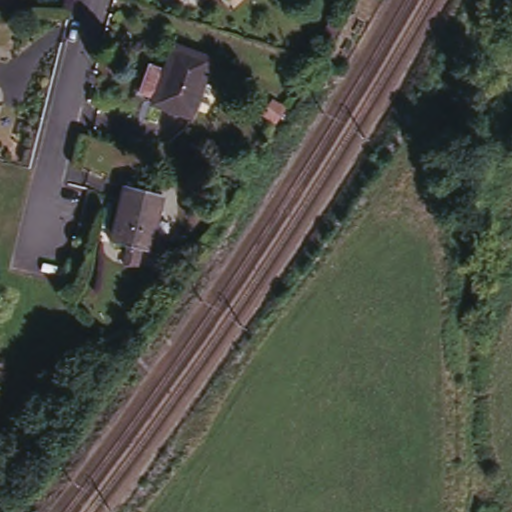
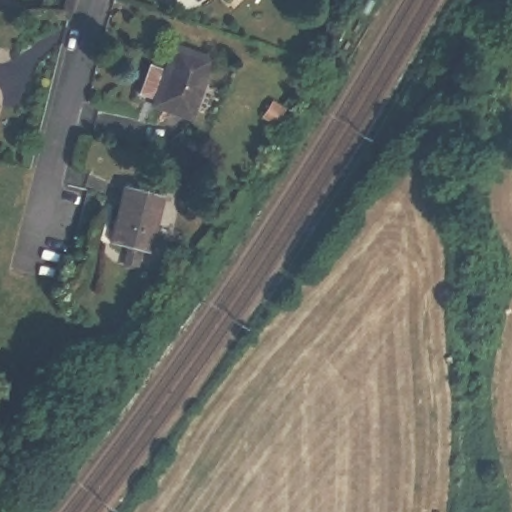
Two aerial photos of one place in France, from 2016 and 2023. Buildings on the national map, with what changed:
unchanged [(154,94),(138,89),(147,61),(163,66),(173,40),(210,55),(190,114),(151,100),(154,94)]
unchanged [(121,267),(123,260),(126,250),(110,247),(125,190),(163,200),(148,256),(139,254),(136,264),(135,270),(121,267)]

